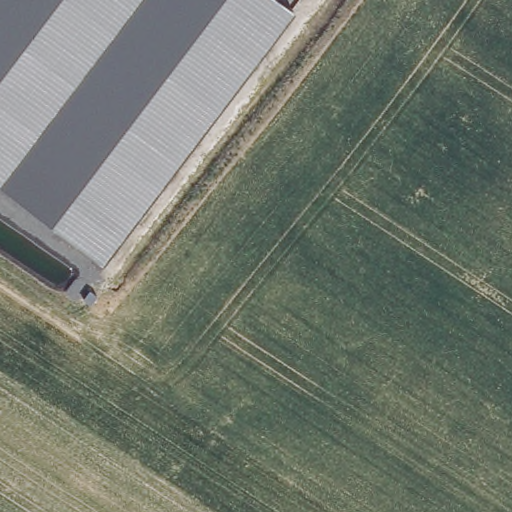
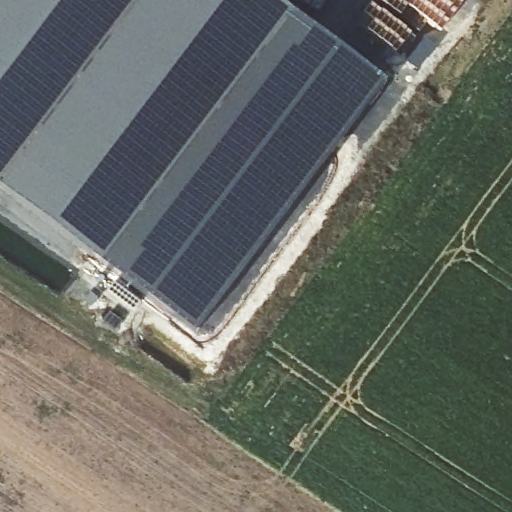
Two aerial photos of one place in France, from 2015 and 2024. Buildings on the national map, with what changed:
unchanged [(103,260),(0,183),(0,0),(281,0),(295,10),(103,260)]
new [(295,10),(385,81),(195,332),(103,260),(295,10)]

